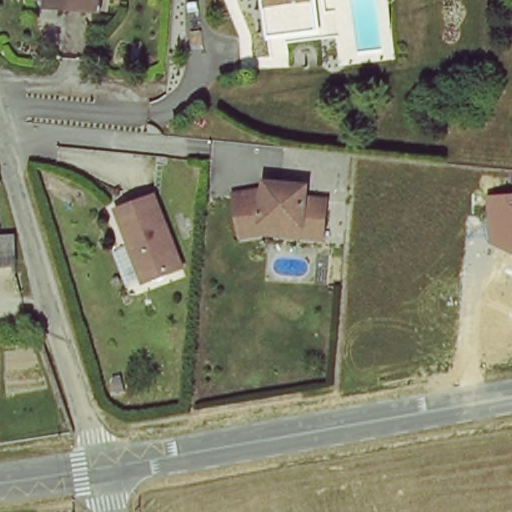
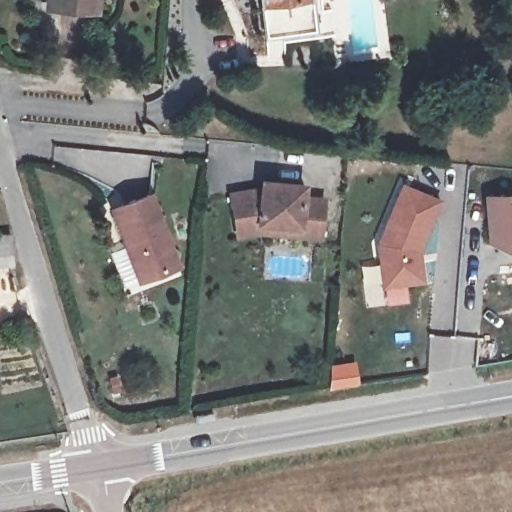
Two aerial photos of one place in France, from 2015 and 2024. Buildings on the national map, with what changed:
unchanged [(316,236),(289,236),(289,225),(258,223),(228,228),(223,195),(262,187),(264,180),(301,183),(301,193),(321,197),(316,236)]
unchanged [(187,264),(136,283),(121,245),(128,242),(113,203),(158,187),(187,264)]
new [(407,187),(443,205),(421,252),(424,285),(384,287),(380,246),(407,187)]
unchanged [(512,255),(488,245),(484,195),(512,194),(512,255)]
unchanged [(0,269),(0,225),(6,225),(8,269),(0,269)]

